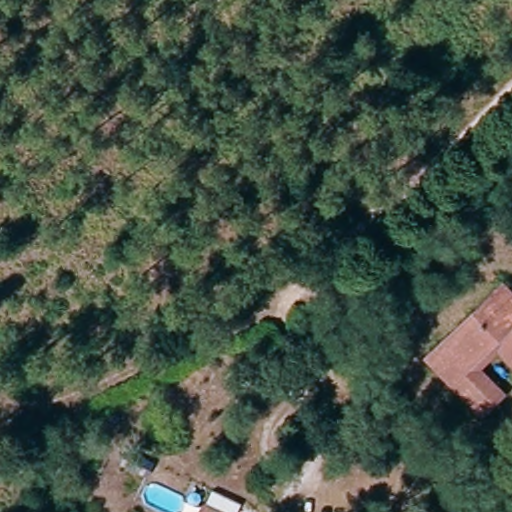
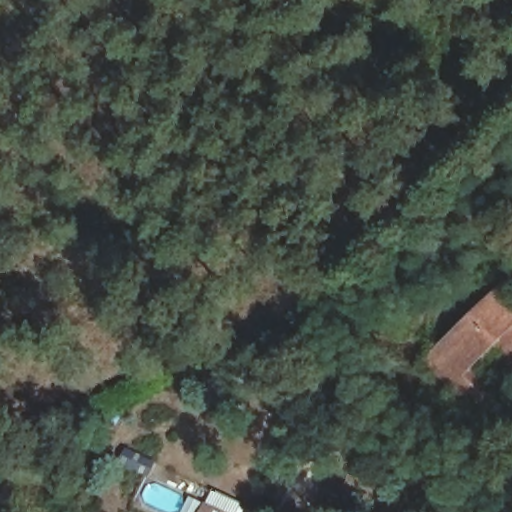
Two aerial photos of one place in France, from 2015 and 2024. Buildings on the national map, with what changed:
unchanged [(477,407),(425,354),(489,292),(502,280),(512,290),(512,360),(497,345),(477,365),(498,388),(492,393),(477,407)]
unchanged [(142,485),(114,472),(120,458),(148,471),(142,485)]
unchanged [(207,504),(224,512),(203,512),(207,504)]

